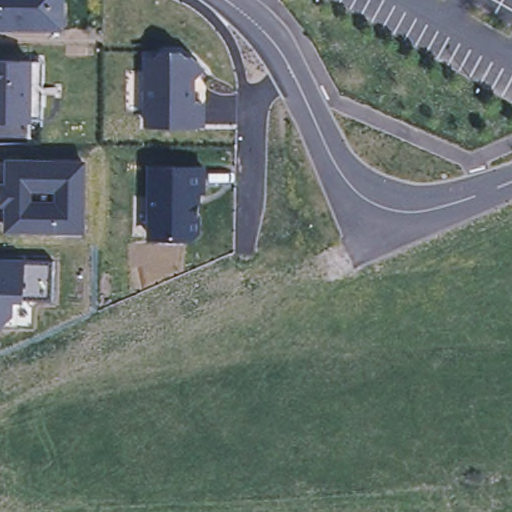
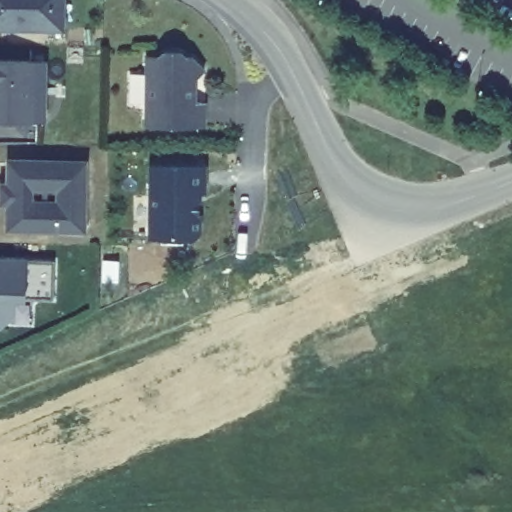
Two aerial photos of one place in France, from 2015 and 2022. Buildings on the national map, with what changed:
unchanged [(65,33),(0,32),(0,0),(65,0),(65,33)]
unchanged [(193,56),(205,72),(196,79),(196,102),(203,102),(204,127),(143,129),(143,57),(193,56)]
unchanged [(33,60),(31,124),(0,123),(0,59),(33,60)]
unchanged [(87,160),(86,235),(4,235),(5,208),(0,208),(0,184),(3,184),(5,159),(87,160)]
unchanged [(202,168),(202,188),(196,188),(196,237),(150,237),(150,168),(202,168)]
unchanged [(25,259),(26,263),(52,264),(54,300),(26,301),(22,297),(16,298),(14,313),(0,329),(0,258),(25,259)]

